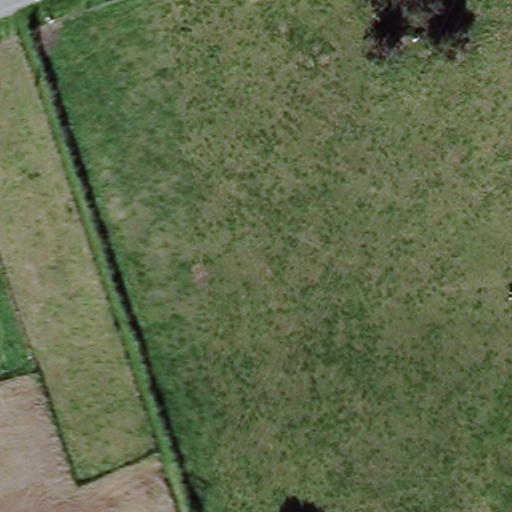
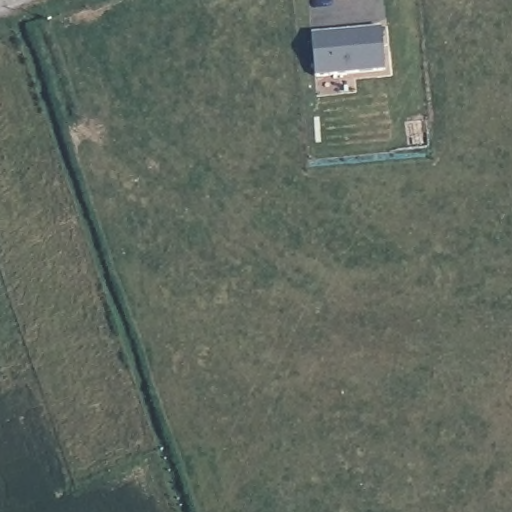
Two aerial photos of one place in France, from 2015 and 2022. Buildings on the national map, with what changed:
new [(378,27),(383,67),(314,75),(310,35),(378,27)]

